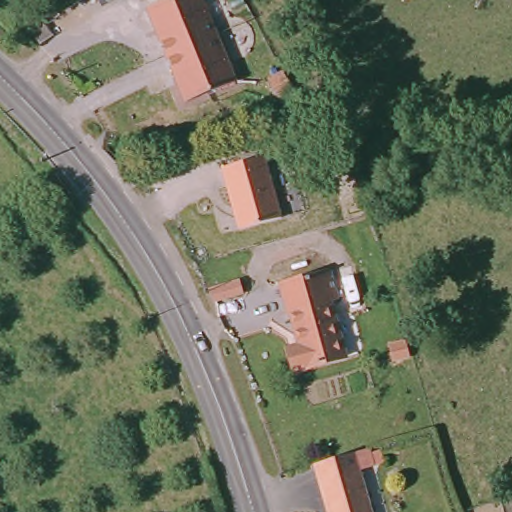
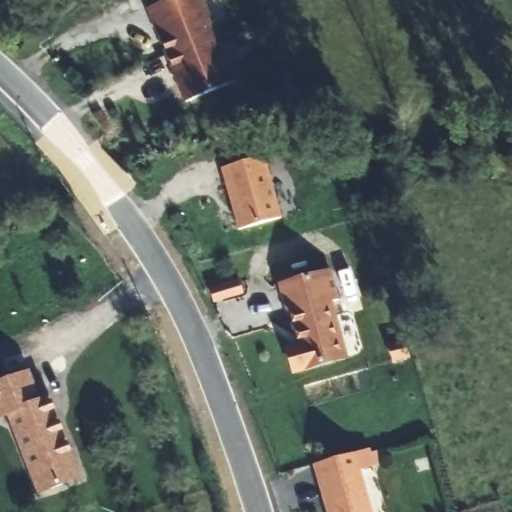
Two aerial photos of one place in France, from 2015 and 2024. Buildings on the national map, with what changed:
unchanged [(205,50),(225,100),(177,120),(157,72),(138,28),(186,7),(205,50)]
unchanged [(282,217),(238,230),(222,167),(266,158),(282,217)]
unchanged [(331,278),(338,301),(331,303),(346,356),(294,371),(287,347),(299,345),(290,316),(286,317),(280,293),(331,278)]
new [(41,399),(51,395),(83,479),(40,495),(9,416),(0,420),(0,382),(30,370),(41,399)]
unchanged [(330,512),(315,465),(355,453),(373,512),(330,512)]

